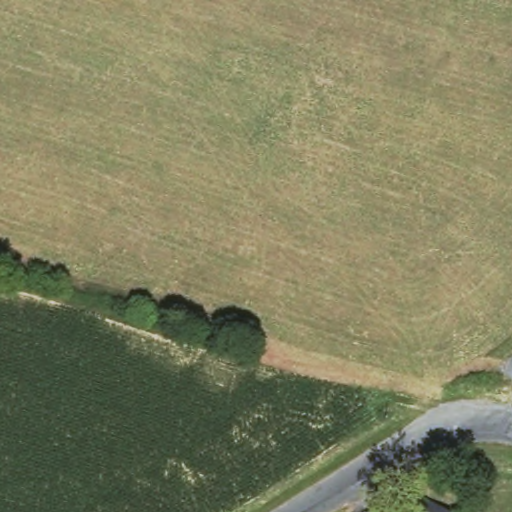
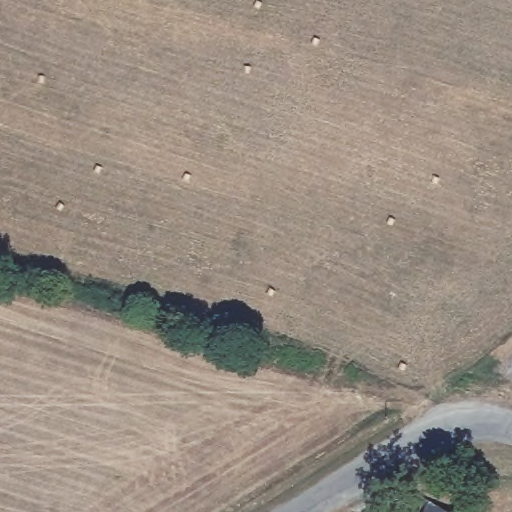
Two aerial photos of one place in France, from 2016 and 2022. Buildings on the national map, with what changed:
unchanged [(453,505),(449,512),(432,512),(426,508),(436,494),(453,505)]

